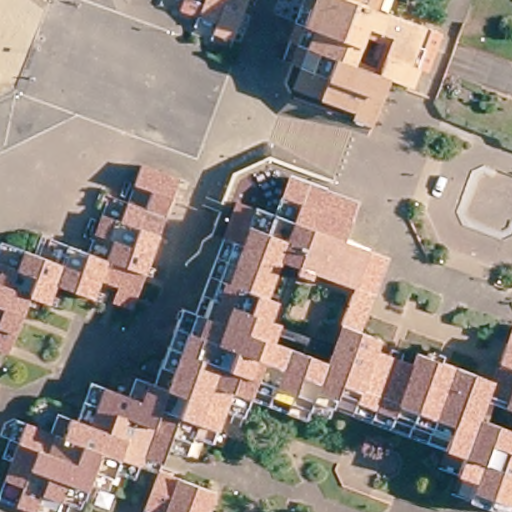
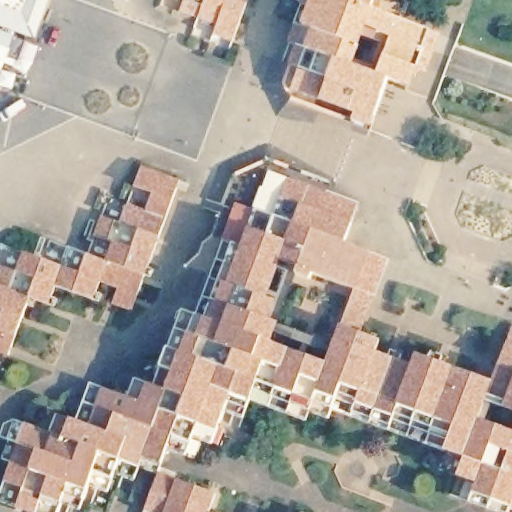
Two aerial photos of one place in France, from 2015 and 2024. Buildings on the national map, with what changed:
new [(35,38),(15,32),(0,27),(0,0),(49,0),(35,38)]
unchanged [(234,44),(214,37),(216,27),(199,21),(204,7),(186,0),(250,0),(234,44)]
unchanged [(368,15),(432,40),(420,76),(406,71),(397,93),(383,88),(370,123),(290,94),(295,77),(285,73),(314,0),(374,0),(368,15)]
new [(15,32),(2,72),(0,72),(0,27),(15,32)]
unchanged [(17,274),(25,253),(34,257),(60,266),(67,249),(87,256),(105,263),(112,244),(94,237),(98,226),(101,218),(119,226),(126,207),(145,213),(150,195),(133,189),(140,169),(180,184),(137,298),(132,311),(113,304),(117,291),(100,284),(94,303),(57,291),(50,308),(30,302),(10,358),(0,354),(0,268),(17,274)]
unchanged [(108,480),(103,498),(81,492),(74,512),(67,512),(57,509),(56,512),(6,512),(0,510),(0,491),(7,470),(0,467),(0,463),(14,428),(46,441),(55,421),(74,429),(87,392),(124,404),(130,384),(148,391),(177,316),(190,321),(220,247),(236,253),(250,216),(269,223),(285,185),(320,199),(353,213),(347,231),(341,247),(385,264),(370,300),(355,339),(376,346),(373,358),(408,372),(413,361),(489,389),(503,350),(512,354),(512,504),(510,503),(506,512),(491,512),(448,495),(458,465),(327,417),(325,425),(306,418),(301,428),(245,406),(238,425),(219,417),(206,451),(188,444),(180,463),(161,456),(154,478),(134,471),(129,487),(108,480)]
unchanged [(213,501),(210,512),(142,512),(154,478),(213,501)]

